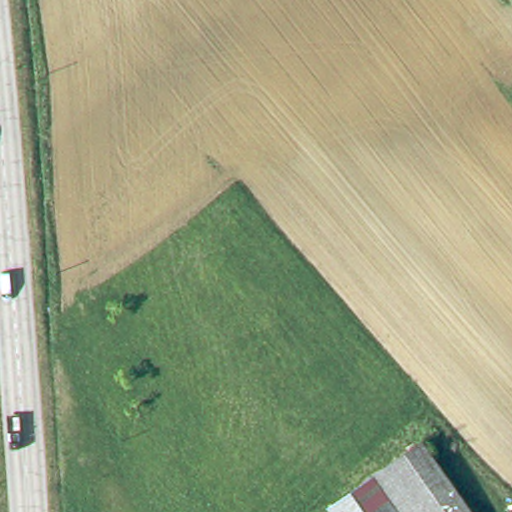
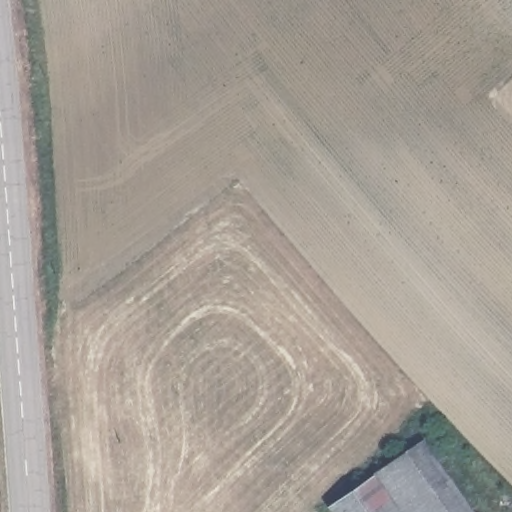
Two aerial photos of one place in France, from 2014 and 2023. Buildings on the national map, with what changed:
unchanged [(427,450),(470,512),(338,512),(427,450)]

